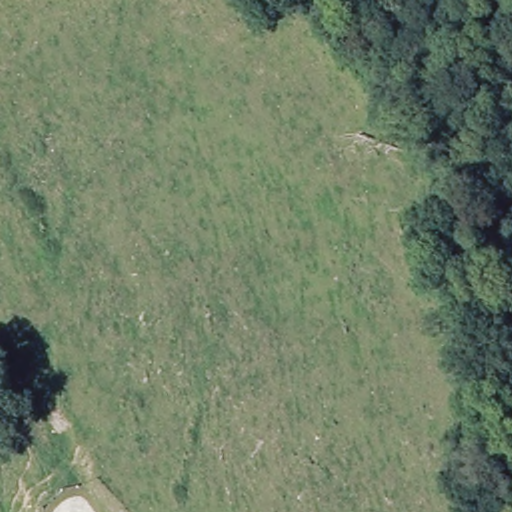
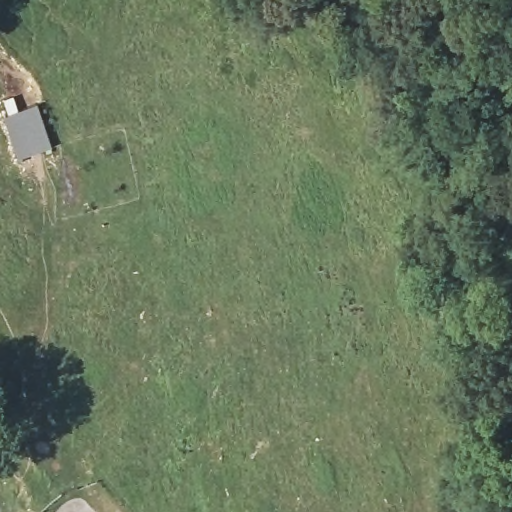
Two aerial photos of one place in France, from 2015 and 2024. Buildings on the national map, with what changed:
new [(2,116),(36,104),(51,146),(17,159),(2,116)]

